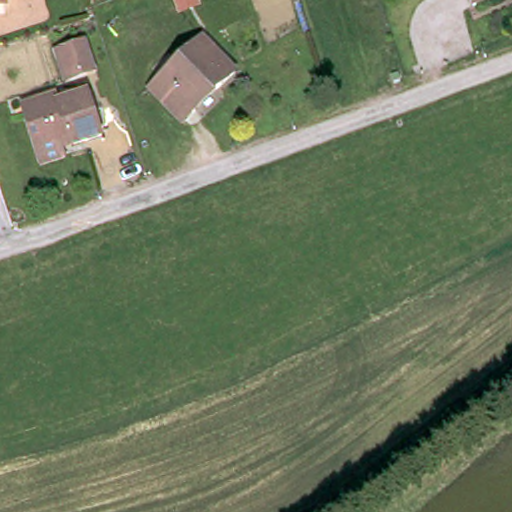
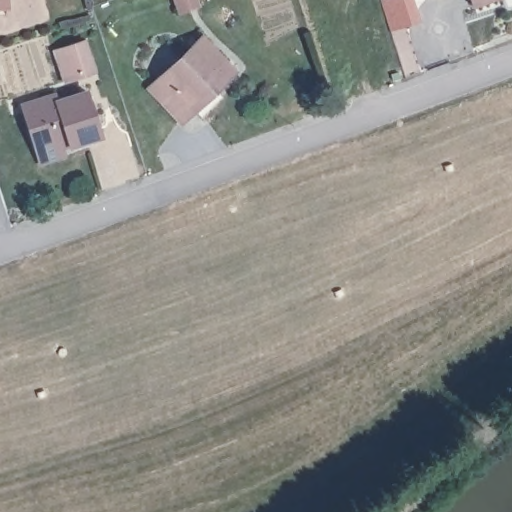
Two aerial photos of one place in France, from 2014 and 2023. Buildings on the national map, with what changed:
unchanged [(185,0),(182,1),(181,0),(185,0)]
new [(416,0),(422,20),(394,28),(386,1),(391,0),(416,0)]
unchanged [(506,0),(477,11),(473,0),(506,0)]
unchanged [(86,43),(96,71),(72,79),(66,81),(56,53),(63,51),(86,43)]
unchanged [(178,117),(157,96),(211,47),(230,69),(178,117)]
unchanged [(35,148),(21,104),(55,93),(57,100),(86,91),(93,110),(99,130),(101,136),(72,146),(38,156),(35,148)]

